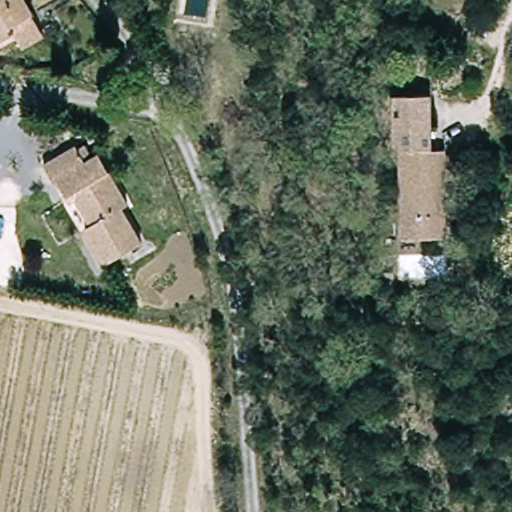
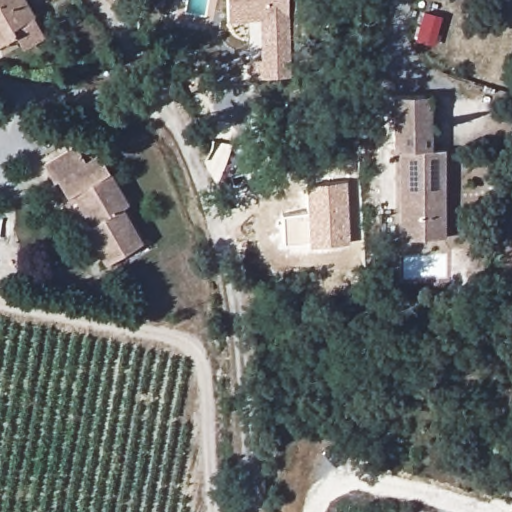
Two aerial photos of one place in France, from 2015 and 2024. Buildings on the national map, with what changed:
unchanged [(0,0),(19,0),(34,28),(0,46),(0,0)]
new [(262,61),(260,21),(229,23),(227,0),(291,0),(293,78),(250,80),(250,62),(262,61)]
unchanged [(431,94),(431,150),(446,150),(446,240),(403,240),(402,151),(394,151),(395,94),(431,94)]
unchanged [(93,157),(125,206),(118,210),(141,245),(106,268),(83,234),(94,227),(77,201),(71,205),(56,184),(48,189),(38,172),(69,152),(79,167),(93,157)]
new [(309,246),(285,245),(283,216),(307,214),(305,184),(348,181),(351,243),(309,246)]

